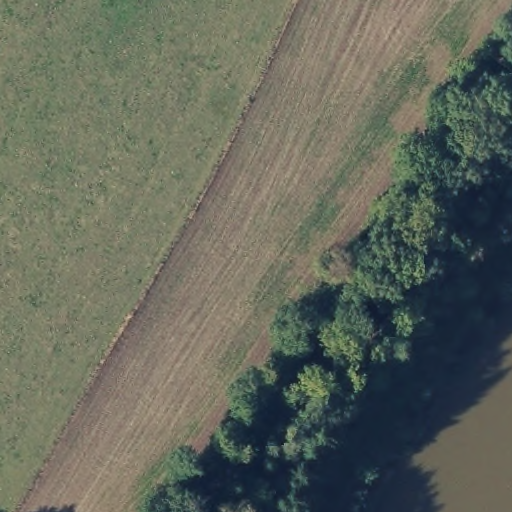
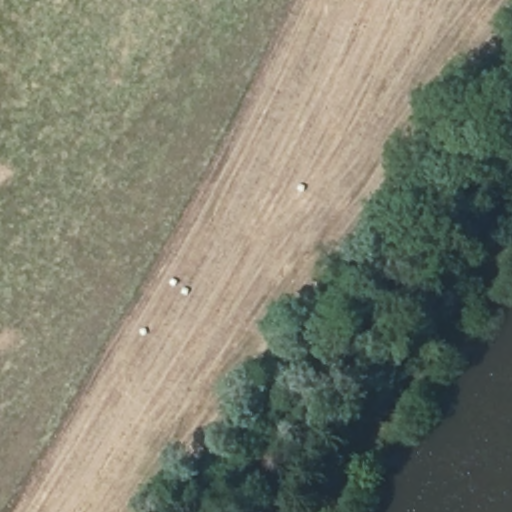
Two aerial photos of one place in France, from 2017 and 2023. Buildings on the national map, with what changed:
unchanged [(252,511),(252,512),(250,512),(252,511)]

